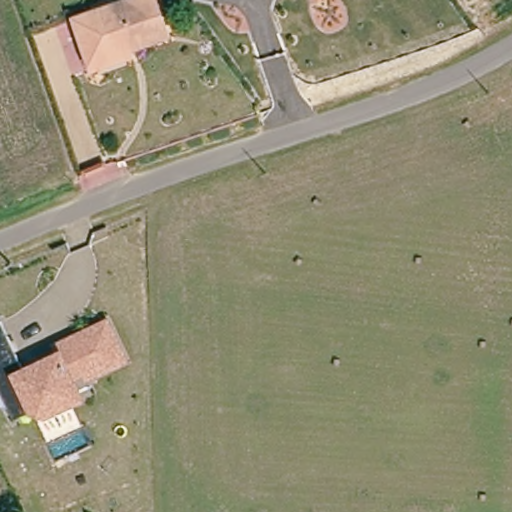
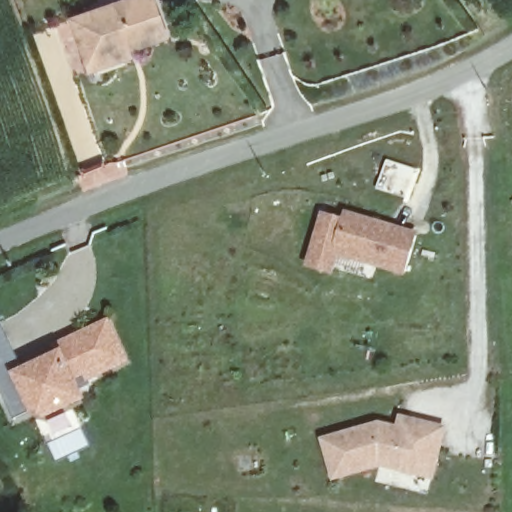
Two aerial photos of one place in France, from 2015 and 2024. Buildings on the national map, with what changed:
unchanged [(124,60),(93,71),(76,24),(139,0),(150,0),(159,27),(162,38),(120,51),(124,60)]
new [(337,258),(331,275),(305,268),(320,212),(342,219),(345,210),(419,232),(405,275),(337,258)]
unchanged [(0,391),(0,318),(22,367),(57,351),(54,343),(69,336),(105,319),(123,358),(86,375),(84,368),(70,374),(72,379),(80,396),(64,403),(43,413),(30,408),(11,416),(0,391)]
new [(380,468),(333,482),(320,438),(378,421),(396,427),(399,414),(447,426),(434,481),(380,468)]

